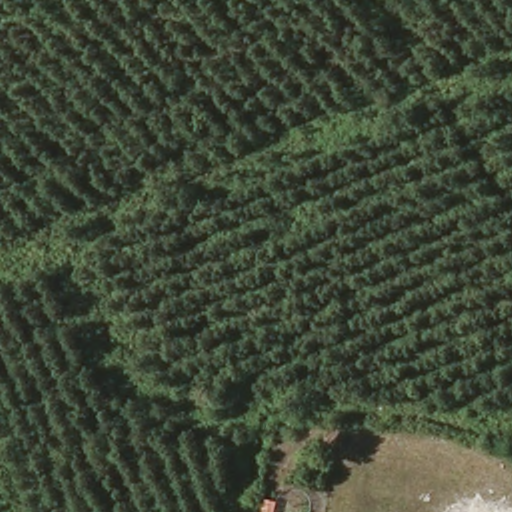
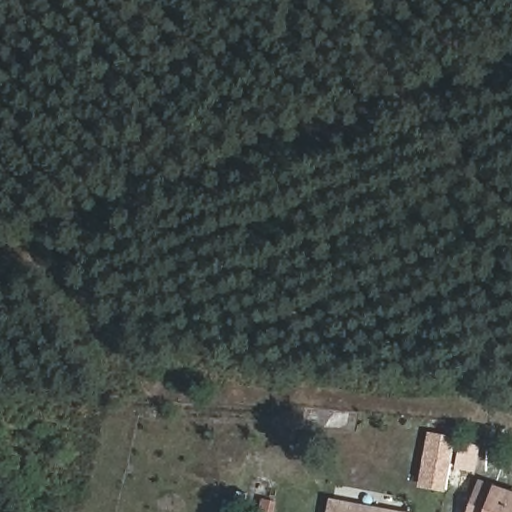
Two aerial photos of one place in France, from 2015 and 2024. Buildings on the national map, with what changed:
new [(445,480),(441,479),(440,491),(418,487),(428,432),(453,436),(445,480)]
new [(481,480),(497,486),(512,491),(512,512),(471,512),(481,480)]
new [(330,499),(406,512),(328,512),(330,499)]

